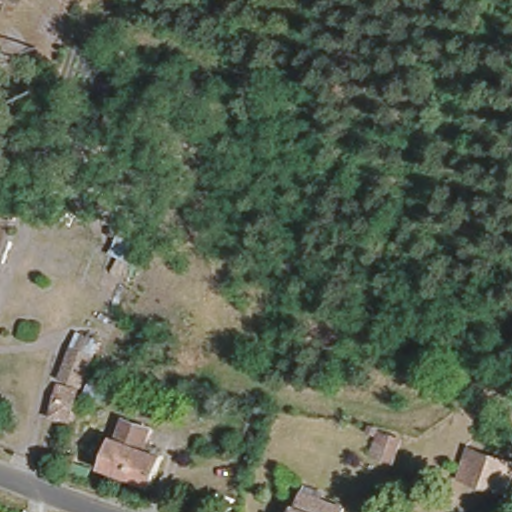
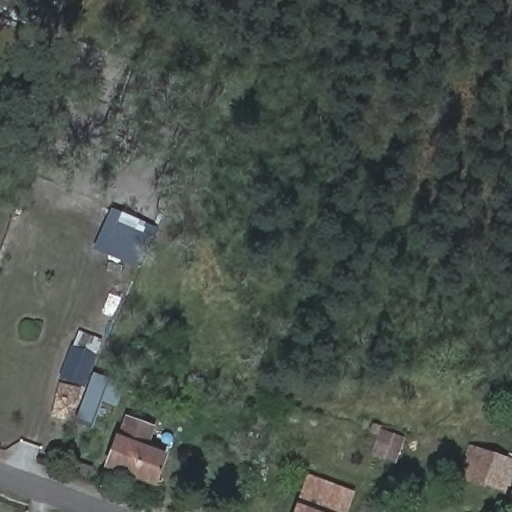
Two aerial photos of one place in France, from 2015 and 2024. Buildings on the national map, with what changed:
new [(112,210),(155,229),(135,269),(94,249),(112,210)]
unchanged [(63,391),(69,358),(80,360),(89,362),(86,374),(82,394),(63,391)]
unchanged [(102,464),(115,432),(117,433),(123,417),(147,427),(144,438),(150,441),(148,447),(161,453),(149,483),(102,464)]
unchanged [(379,423),(378,429),(370,428),(371,421),(379,423)]
unchanged [(403,460),(395,481),(366,469),(384,423),(394,427),(384,453),(403,460)]
unchanged [(469,477),(479,448),(507,457),(497,487),(469,477)]
unchanged [(296,505),(298,506),(304,490),(345,507),(343,512),(293,512),(296,505)]

